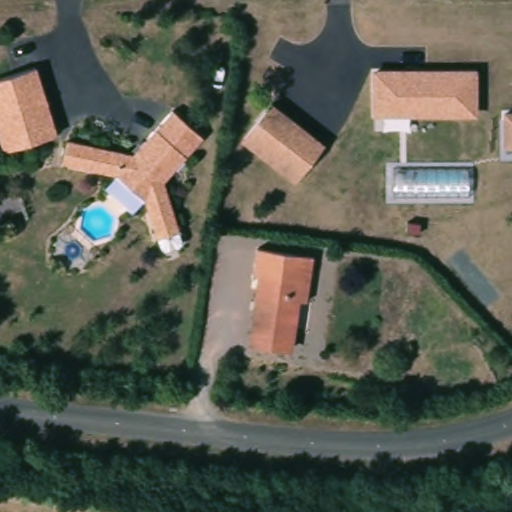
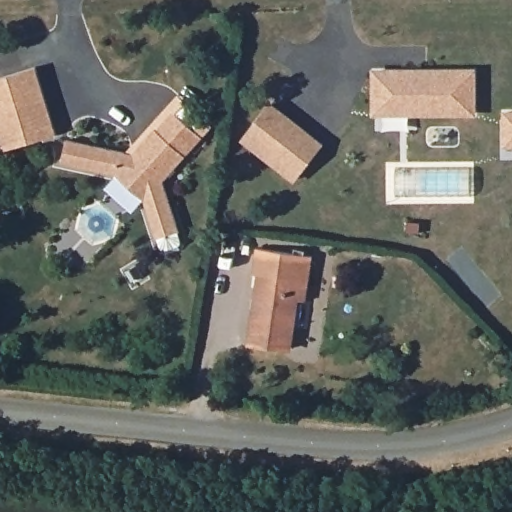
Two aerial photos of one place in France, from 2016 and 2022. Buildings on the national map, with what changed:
unchanged [(477,67),(477,116),(372,117),(372,68),(477,67)]
unchanged [(54,136),(0,152),(0,79),(33,69),(54,136)]
unchanged [(323,143),(292,177),(245,138),(271,104),(323,143)]
unchanged [(512,112),(512,146),(500,147),(502,113),(512,112)]
unchanged [(64,139),(129,153),(152,126),(182,152),(160,177),(165,199),(174,228),(153,236),(140,195),(112,172),(60,159),(64,139)]
unchanged [(313,257),(301,307),(294,305),(282,354),(242,344),(257,280),(249,278),(254,250),(313,257)]

